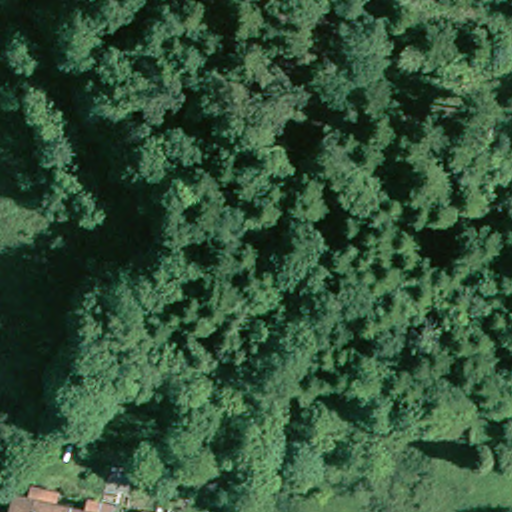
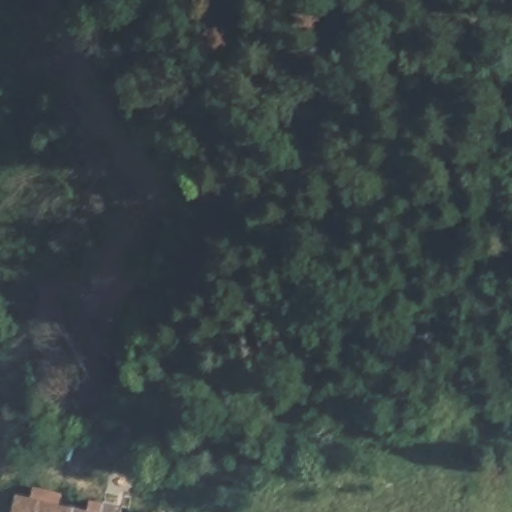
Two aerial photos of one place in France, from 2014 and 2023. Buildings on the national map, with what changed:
unchanged [(47,497),(43,512),(14,512),(17,500),(28,503),(31,493),(47,497)]
unchanged [(63,501),(60,511),(63,512),(43,512),(47,497),(63,501)]
unchanged [(103,510),(103,512),(90,512),(91,507),(103,510)]
unchanged [(109,512),(103,512),(103,510),(109,512)]

